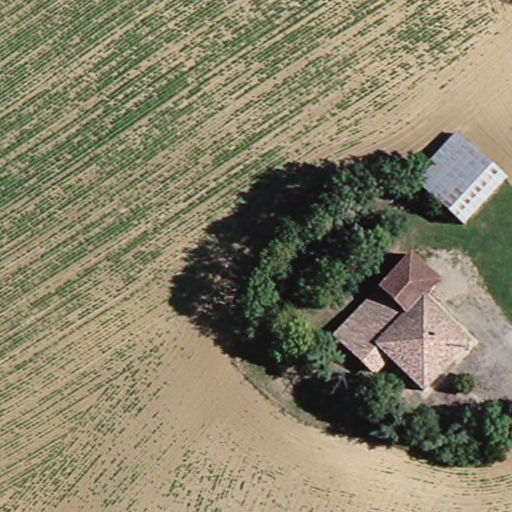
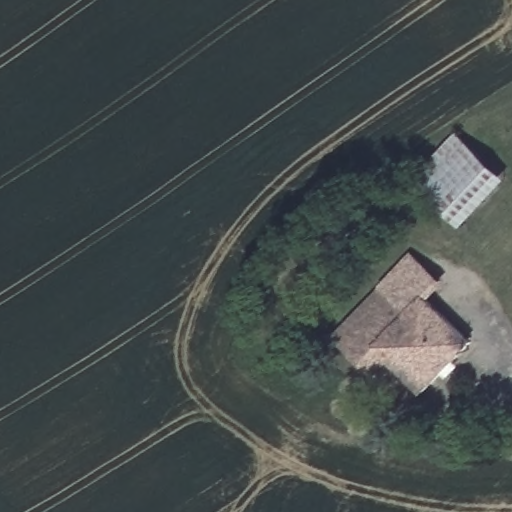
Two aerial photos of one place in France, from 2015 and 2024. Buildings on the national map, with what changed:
unchanged [(499,170),(462,224),(411,188),(447,135),(499,170)]
unchanged [(400,257),(431,282),(418,303),(405,317),(385,303),(373,315),(363,305),(400,257)]
unchanged [(385,303),(405,317),(418,303),(464,340),(424,389),(375,350),(361,365),(334,341),(346,325),(363,305),(373,315),(385,303)]

